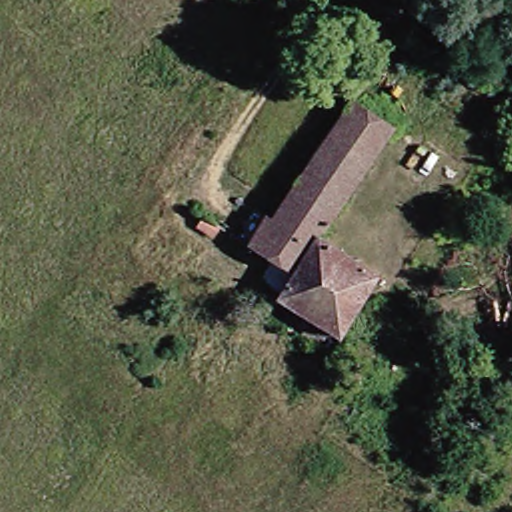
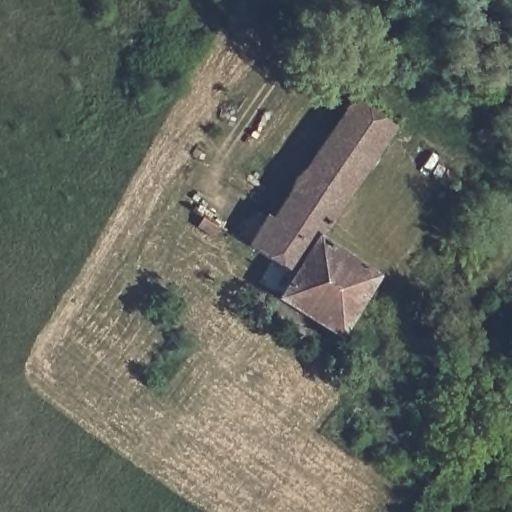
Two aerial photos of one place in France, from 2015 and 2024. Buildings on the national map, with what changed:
unchanged [(268,223),(342,110),(381,138),(314,241),(377,280),(361,305),(339,341),(273,300),(293,272),(246,243),(263,219),(268,223)]
unchanged [(469,358),(490,363),(495,370),(496,385),(492,391),(487,395),(481,398),(478,398),(471,393),(459,385),(460,367),(469,358)]

